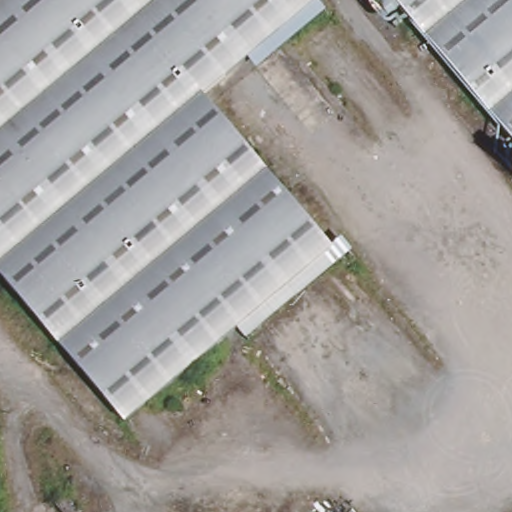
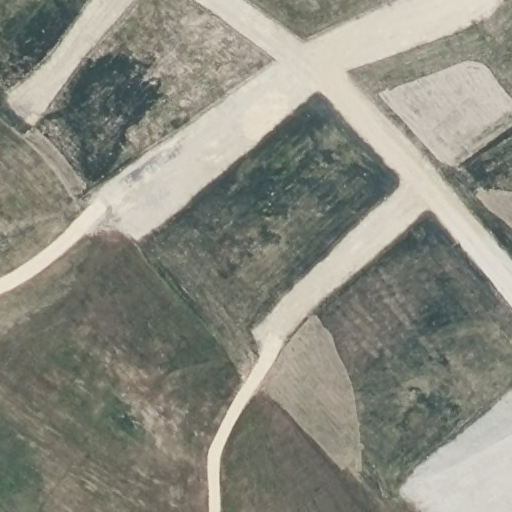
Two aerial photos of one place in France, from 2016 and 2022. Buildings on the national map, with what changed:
demolished [(203,98),(332,251),(126,426),(0,273),(0,0),(317,0),(318,1),(203,98)]
demolished [(512,0),(512,142),(391,0),(512,0)]

